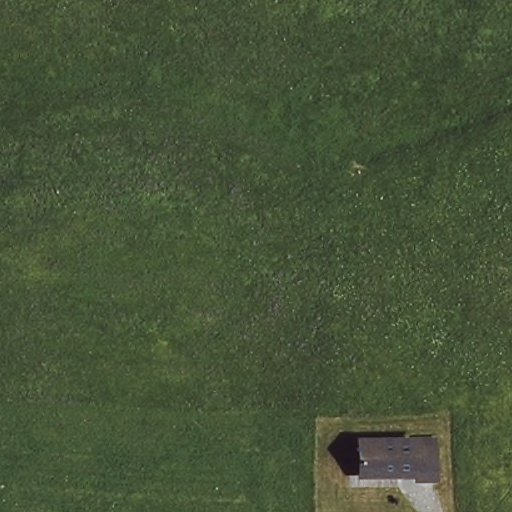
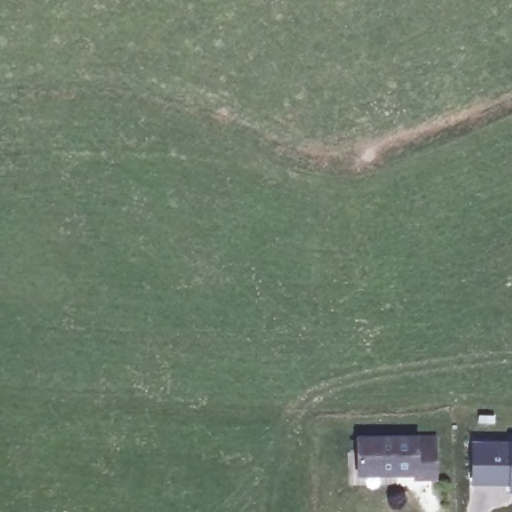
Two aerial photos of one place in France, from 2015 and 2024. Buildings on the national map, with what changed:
new [(510,492),(510,484),(472,485),(472,440),(512,441),(512,493),(510,492)]
unchanged [(435,441),(435,478),(416,478),(416,473),(360,473),(360,441),(435,441)]

